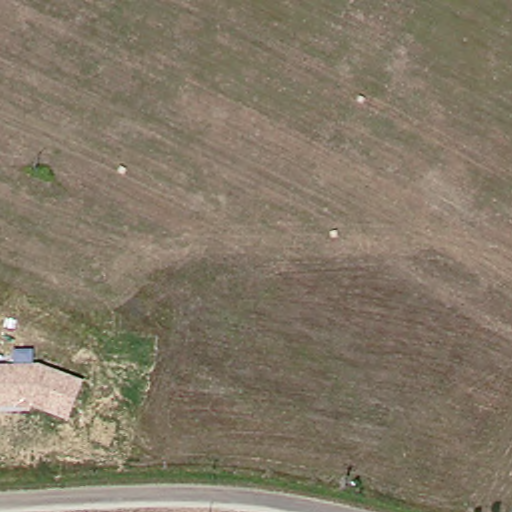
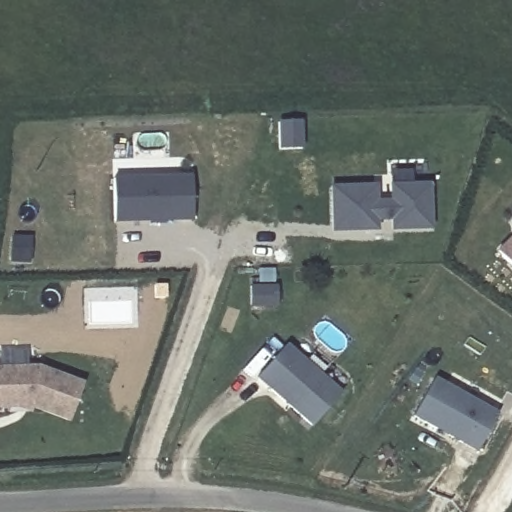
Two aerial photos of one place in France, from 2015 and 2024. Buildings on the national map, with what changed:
new [(281,120),(303,120),(303,145),(281,145),(281,120)]
new [(194,175),(195,217),(116,219),(115,177),(194,175)]
new [(377,184),(377,200),(393,200),(393,184),(432,184),(432,229),(394,229),(394,219),(378,219),(378,229),(335,230),(335,185),(377,184)]
new [(512,267),(496,250),(512,234),(512,267)]
new [(312,425),(257,377),(287,343),(341,392),(312,425)]
unchanged [(69,422),(32,408),(0,410),(0,366),(40,365),(83,382),(69,422)]
new [(432,379),(505,417),(488,449),(415,411),(432,379)]

